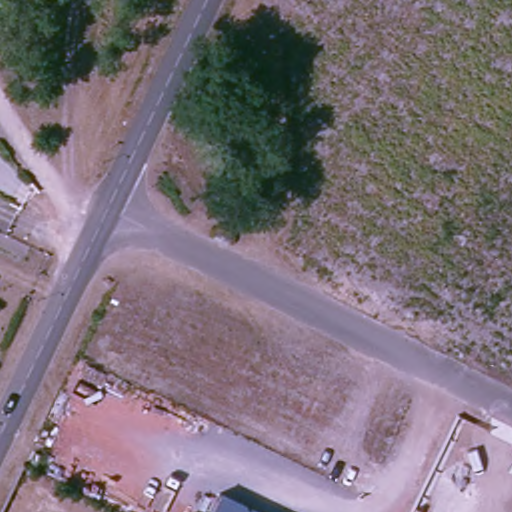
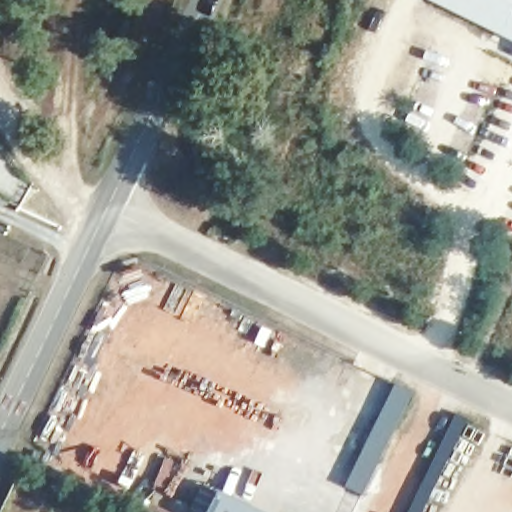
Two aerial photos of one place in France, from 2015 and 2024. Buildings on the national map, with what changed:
new [(427,0),(512,0),(512,41),(427,0)]
new [(365,495),(347,487),(395,386),(413,395),(365,495)]
new [(425,512),(409,512),(457,413),(470,420),(425,512)]
unchanged [(211,512),(222,491),(267,512),(211,512)]
unchanged [(194,512),(193,512),(194,511),(194,512)]

